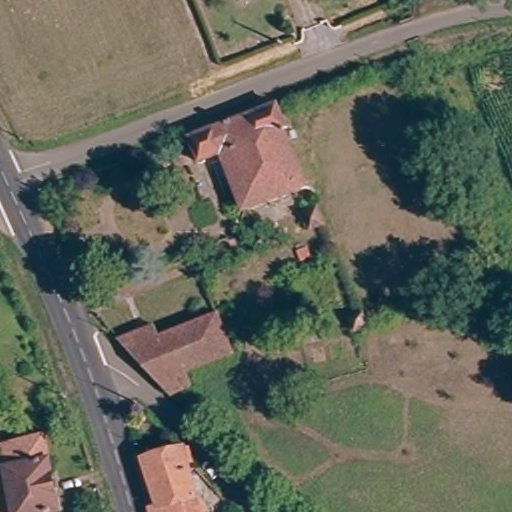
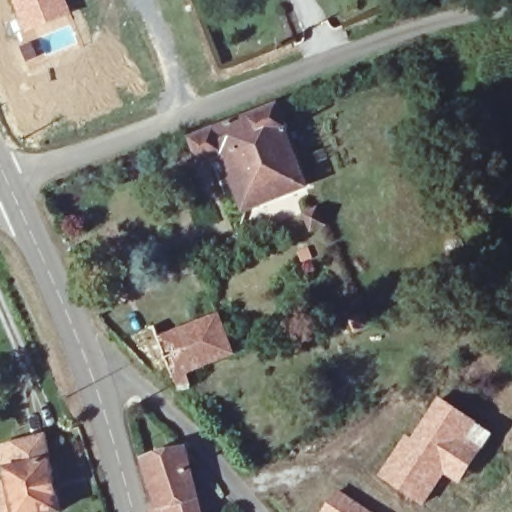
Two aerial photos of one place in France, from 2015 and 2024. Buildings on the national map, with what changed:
new [(73,14),(23,34),(10,0),(67,0),(73,14)]
unchanged [(280,129),(276,130),(300,184),(240,209),(214,154),(196,162),(184,135),(270,106),(280,129)]
unchanged [(316,209),(324,226),(312,231),(303,214),(316,209)]
unchanged [(362,316),(380,310),(385,323),(367,329),(362,316)]
unchanged [(185,373),(191,388),(172,396),(166,398),(119,341),(148,328),(156,337),(214,315),(230,353),(185,373)]
new [(412,438),(439,398),(494,433),(460,484),(445,475),(423,507),(378,475),(406,435),(412,438)]
unchanged [(46,512),(14,512),(13,507),(0,509),(0,478),(6,476),(1,449),(45,440),(61,509),(46,512)]
unchanged [(180,445),(199,512),(146,512),(144,503),(150,500),(136,457),(180,445)]
new [(321,512),(338,489),(371,512),(321,512)]

